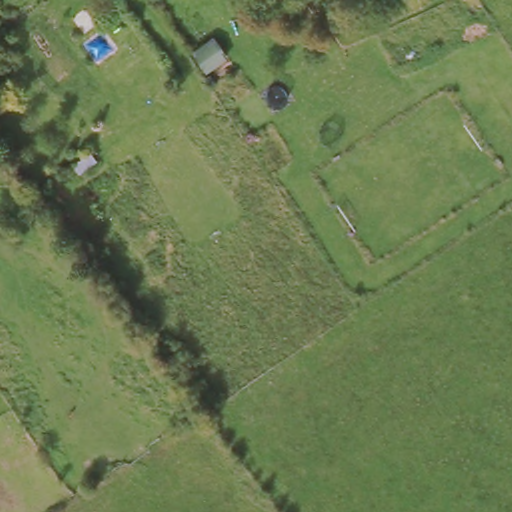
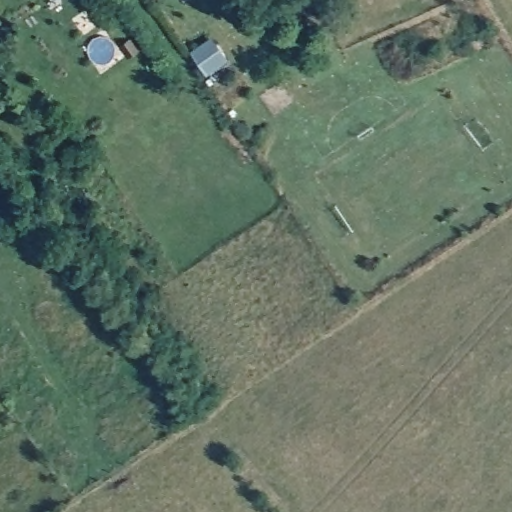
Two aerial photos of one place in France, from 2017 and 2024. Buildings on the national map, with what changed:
unchanged [(188,46),(208,33),(221,53),(202,66),(188,46)]

